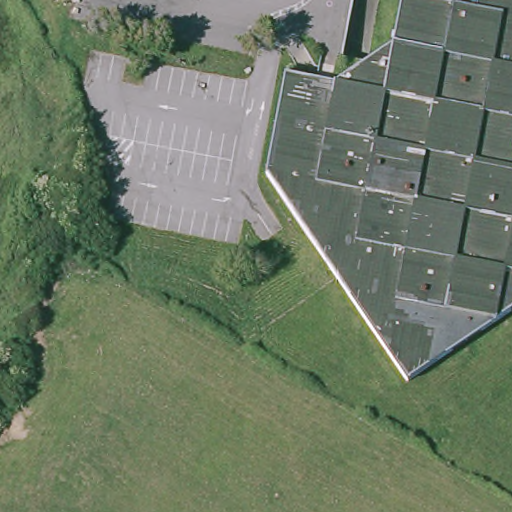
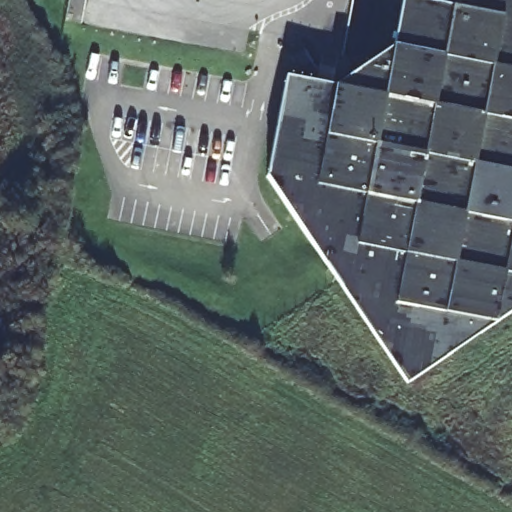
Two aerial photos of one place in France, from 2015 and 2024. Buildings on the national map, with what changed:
unchanged [(401,380),(261,175),(281,75),(329,86),(387,48),(397,0),(418,0),(448,5),(455,0),(512,0),(512,305),(401,380)]

